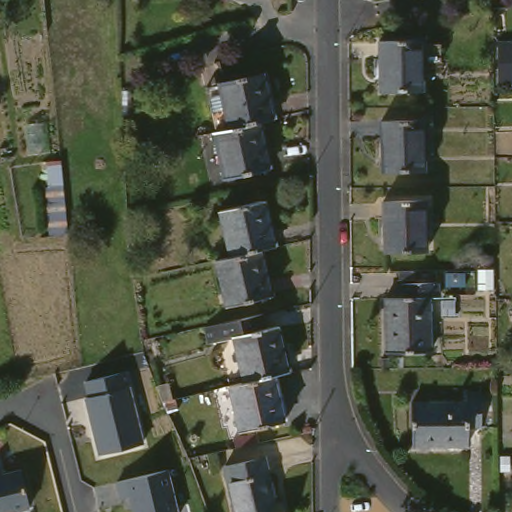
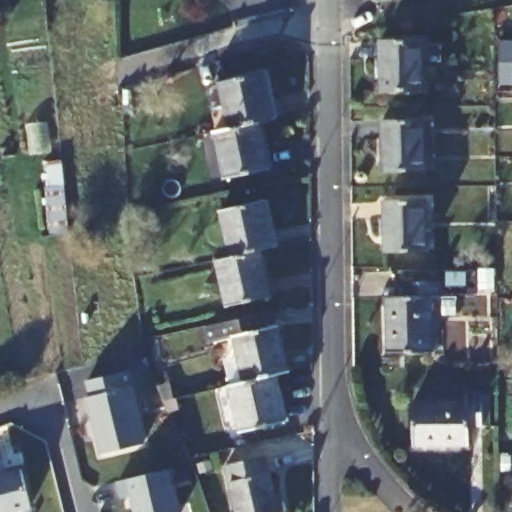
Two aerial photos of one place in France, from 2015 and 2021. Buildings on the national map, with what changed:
unchanged [(427,36),(428,87),(385,88),(384,37),(427,36)]
unchanged [(499,72),(499,42),(512,42),(512,85),(499,85),(499,72)]
unchanged [(217,83),(228,80),(227,79),(271,69),(281,115),(267,119),(226,128),(221,101),(217,83)]
unchanged [(429,116),(430,166),(388,168),(386,118),(429,116)]
unchanged [(277,165),(234,175),(223,128),(226,128),(267,119),(277,165)]
unchanged [(51,190),(51,163),(66,160),(74,231),(54,232),(51,190)]
unchanged [(431,196),(432,247),(389,248),(388,198),(431,196)]
unchanged [(239,254),(229,206),(273,197),(284,244),(269,247),(239,254)]
unchanged [(239,254),(269,247),(279,293),(236,303),(225,257),(239,254)]
unchanged [(418,293),(418,279),(448,279),(448,293),(438,293),(438,348),(396,348),(396,293),(418,293)]
unchanged [(244,314),(247,329),(280,321),(292,368),(277,371),(248,378),(237,333),(212,339),(208,322),(244,314)]
unchanged [(277,371),(288,418),(244,428),(233,381),(248,378),(277,371)]
unchanged [(86,401),(90,400),(86,384),(121,375),(125,391),(129,390),(143,447),(100,457),(86,401)]
unchanged [(157,387),(169,384),(173,399),(175,398),(178,411),(168,413),(163,401),(157,387)]
unchanged [(472,404),(472,395),(486,394),(486,423),(472,424),(472,446),(418,447),(418,406),(472,404)]
unchanged [(268,458),(272,472),(273,472),(280,504),(288,502),(291,512),(240,512),(230,467),(268,458)]
unchanged [(129,477),(172,467),(184,512),(141,512),(136,494),(126,496),(122,479),(129,477)]
unchanged [(0,472),(1,475),(25,469),(34,507),(11,512),(0,512),(0,472)]

